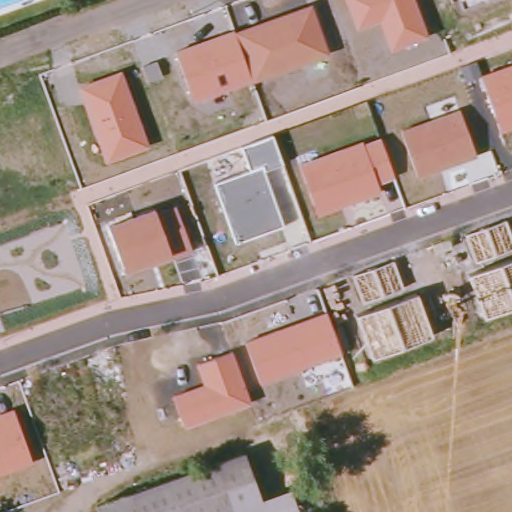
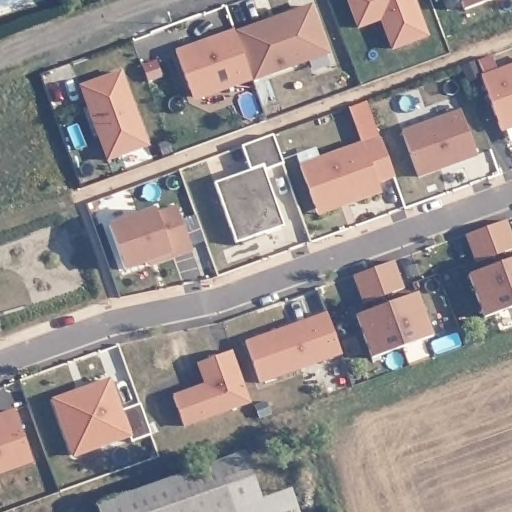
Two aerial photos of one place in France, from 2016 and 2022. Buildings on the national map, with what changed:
unchanged [(390,50),(380,24),(357,31),(345,0),(415,0),(429,36),(390,50)]
new [(459,0),(490,0),(463,10),(459,0)]
unchanged [(310,6),(327,57),(194,101),(176,49),(310,6)]
unchanged [(501,131),(481,75),(512,64),(512,127),(501,131)]
unchanged [(121,70),(151,146),(106,162),(77,86),(121,70)]
unchanged [(459,110),(475,156),(419,174),(402,128),(459,110)]
unchanged [(250,170),(243,146),(273,135),(282,164),(264,170),(284,225),(236,242),(215,182),(250,170)]
unchanged [(362,141),(363,144),(380,136),(395,176),(378,183),(382,191),(316,215),(296,163),(362,141)]
unchanged [(174,202),(192,249),(125,272),(107,225),(174,202)]
unchanged [(512,230),(512,250),(475,262),(466,234),(509,220),(512,230)]
unchanged [(393,260),(404,290),(365,303),(354,274),(393,260)]
unchanged [(484,320),(468,275),(512,260),(512,310),(484,320)]
unchanged [(419,294),(436,339),(373,361),(357,315),(419,294)]
unchanged [(326,311),(341,354),(259,382),(244,339),(326,311)]
unchanged [(231,351),(250,402),(184,425),(172,394),(203,382),(196,363),(231,351)]
new [(109,378),(122,410),(140,404),(151,435),(131,442),(130,437),(72,458),(51,400),(109,378)]
unchanged [(12,408),(33,463),(0,475),(0,412),(12,408)]
unchanged [(238,509),(239,512),(103,512),(100,503),(247,452),(263,500),(238,509)]
unchanged [(287,493),(294,491),(301,512),(239,512),(238,509),(263,500),(287,493)]

